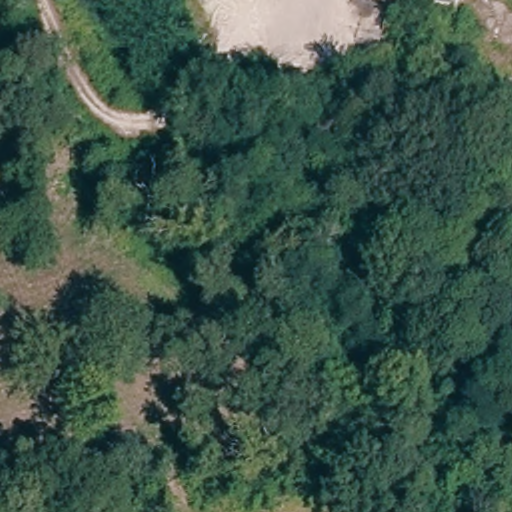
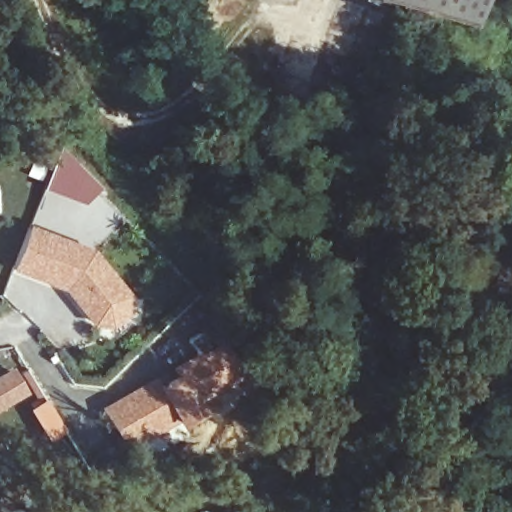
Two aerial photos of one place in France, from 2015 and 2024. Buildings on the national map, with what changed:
unchanged [(377,5),(363,0),(466,0),(457,29),(377,5)]
new [(84,203),(54,194),(45,184),(57,161),(66,152),(100,189),(84,203)]
new [(63,290),(13,270),(30,224),(95,250),(130,294),(128,314),(109,326),(95,326),(63,290)]
new [(156,386),(174,376),(169,370),(195,357),(188,341),(214,327),(242,377),(198,403),(204,414),(178,429),(174,421),(124,450),(99,408),(153,378),(156,386)]
new [(28,394),(0,410),(0,374),(13,367),(28,394)]

